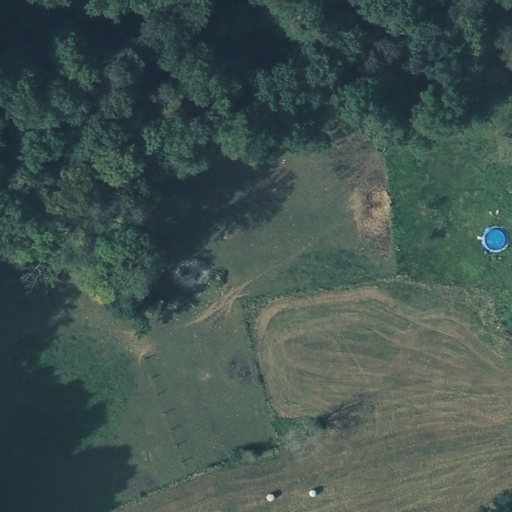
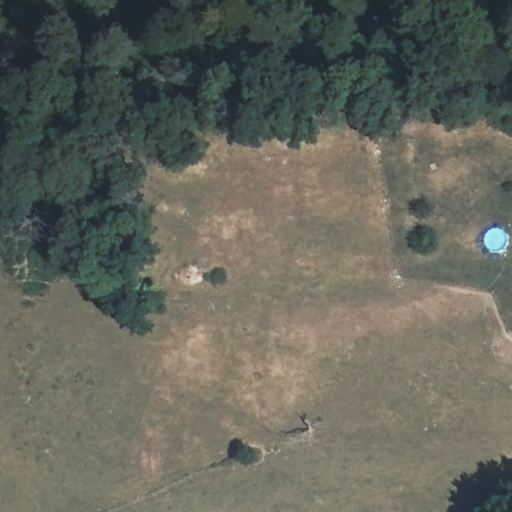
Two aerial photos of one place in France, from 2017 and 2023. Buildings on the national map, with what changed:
[]

